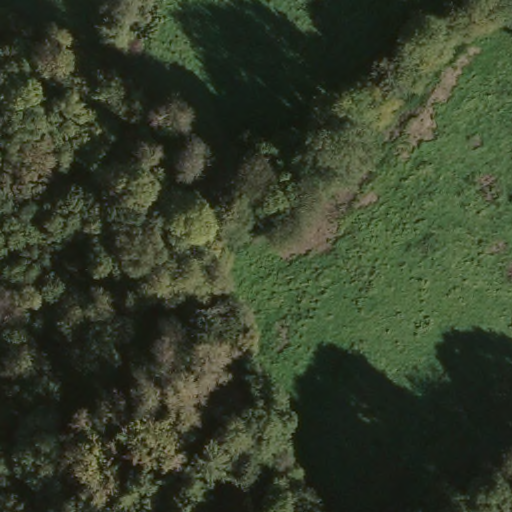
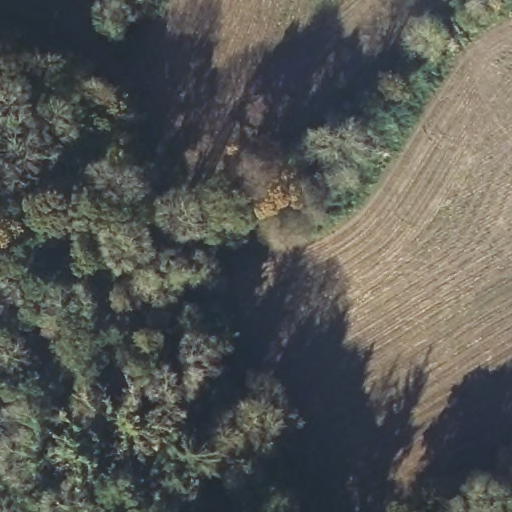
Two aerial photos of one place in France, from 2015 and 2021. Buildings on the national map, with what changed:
[]

